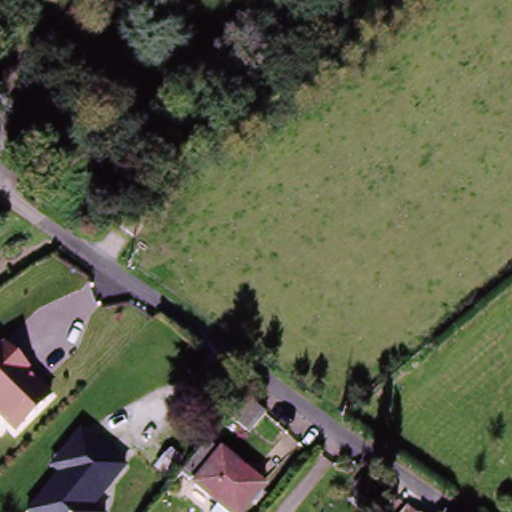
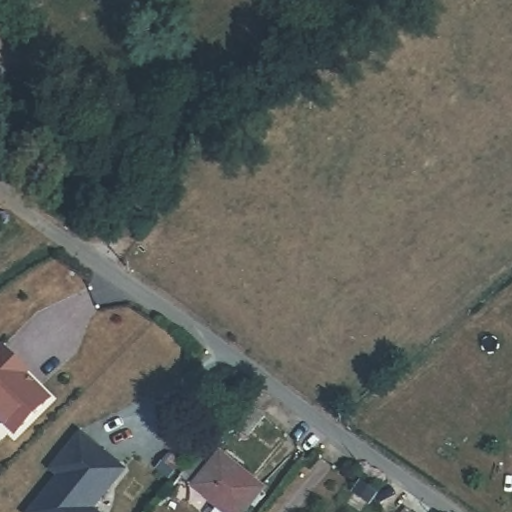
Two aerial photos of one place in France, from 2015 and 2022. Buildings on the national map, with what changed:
unchanged [(121,210),(143,224),(132,239),(131,240),(110,227),(117,217),(121,210)]
unchanged [(47,403),(15,437),(0,422),(0,357),(3,354),(26,377),(20,383),(29,391),(31,388),(47,403)]
unchanged [(246,399),(265,416),(249,434),(230,418),(246,399)]
unchanged [(126,470),(96,511),(98,512),(37,512),(41,506),(62,477),(54,471),(60,464),(81,436),(126,470)]
unchanged [(203,487),(191,477),(217,444),(230,454),(271,489),(265,497),(269,500),(263,507),(259,504),(251,512),(225,512),(228,508),(203,487)]
unchanged [(411,507),(417,512),(406,512),(411,507)]

